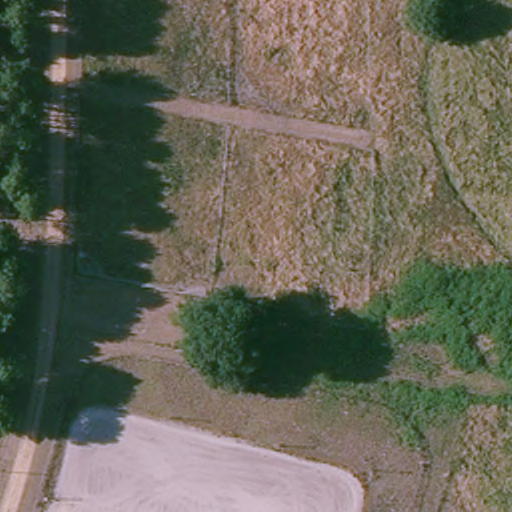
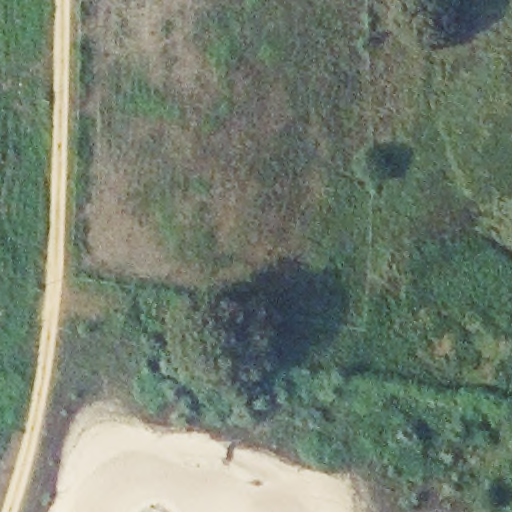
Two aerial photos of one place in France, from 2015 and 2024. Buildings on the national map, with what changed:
[]

